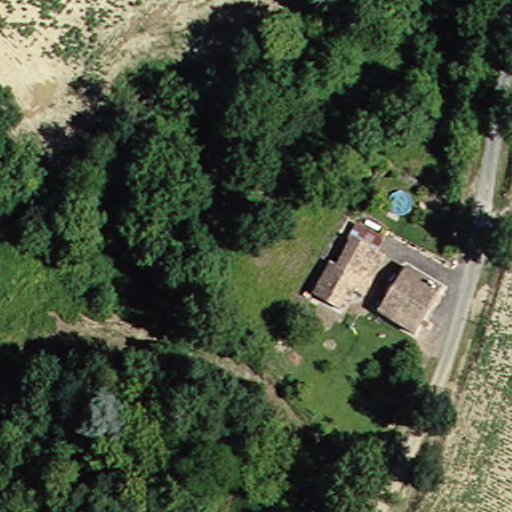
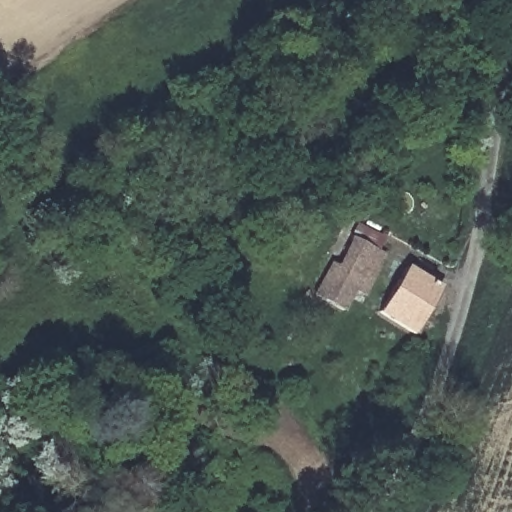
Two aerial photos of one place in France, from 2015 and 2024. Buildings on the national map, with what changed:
unchanged [(374,306),(366,301),(353,296),(342,318),(312,305),(330,268),(335,270),(349,238),(388,256),(381,271),(388,275),(374,306)]
unchanged [(412,267),(452,289),(427,338),(389,318),(412,267)]

